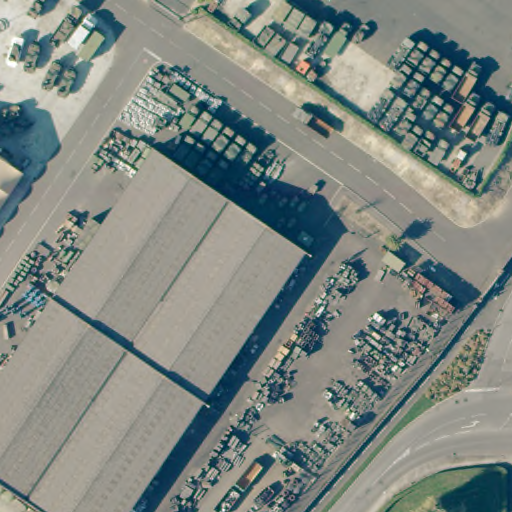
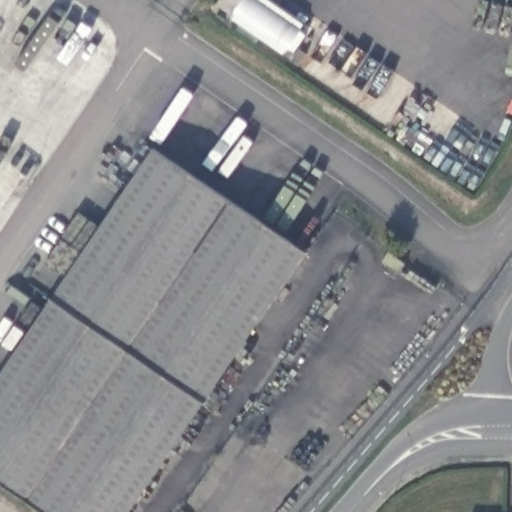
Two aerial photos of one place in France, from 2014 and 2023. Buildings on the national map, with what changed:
unchanged [(0,478),(0,379),(155,158),(295,256),(119,512),(48,512),(0,478)]

